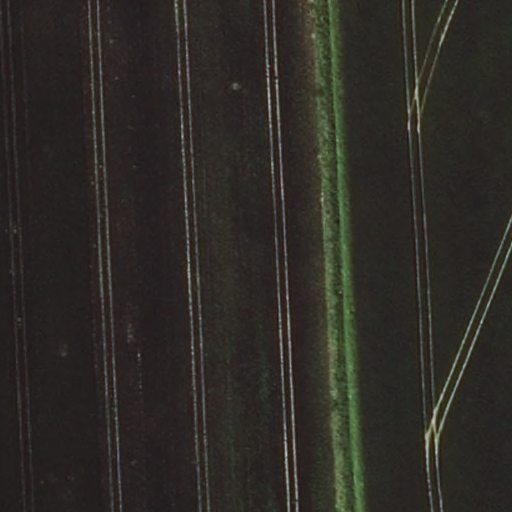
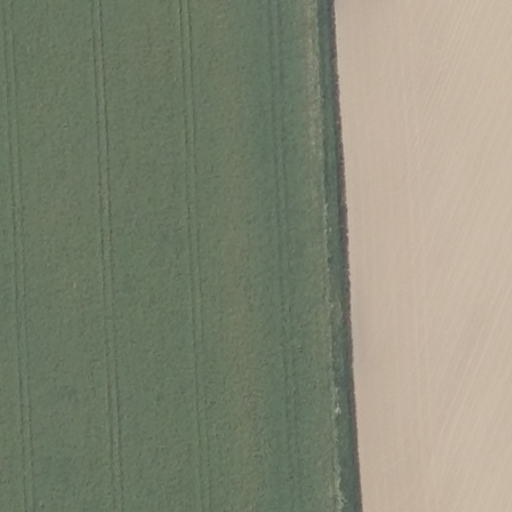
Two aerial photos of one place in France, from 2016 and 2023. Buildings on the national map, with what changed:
[]

